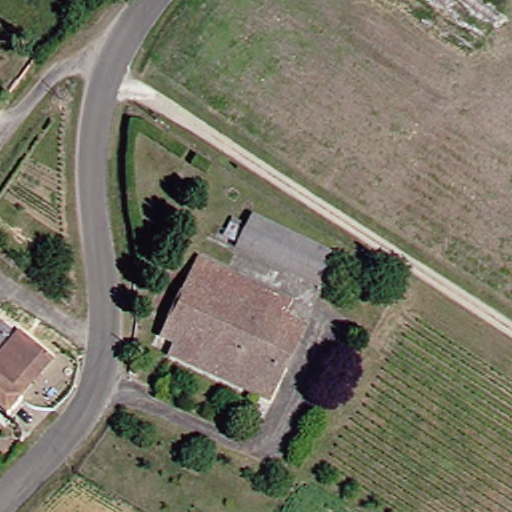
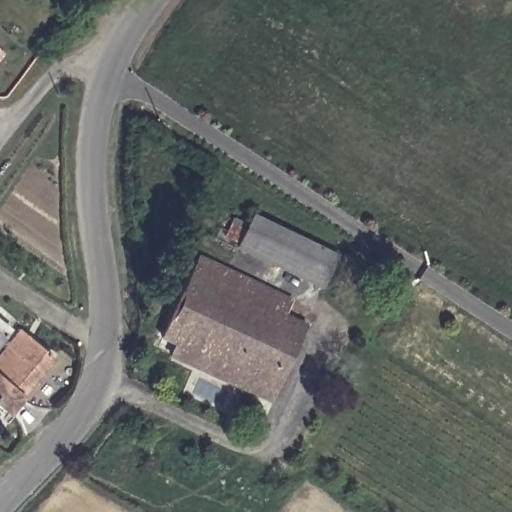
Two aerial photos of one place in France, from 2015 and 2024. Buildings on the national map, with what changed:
unchanged [(227,246),(229,242),(214,234),(220,223),(235,230),(242,214),(325,254),(310,285),(227,246)]
unchanged [(284,344),(259,398),(241,390),(241,389),(246,378),(166,342),(165,342),(151,336),(188,255),(281,299),(274,312),(294,322),(284,344)]
unchanged [(9,329),(42,358),(9,395),(10,396),(0,408),(0,340),(9,329)]
unchanged [(241,389),(161,353),(166,342),(246,378),(241,389)]

